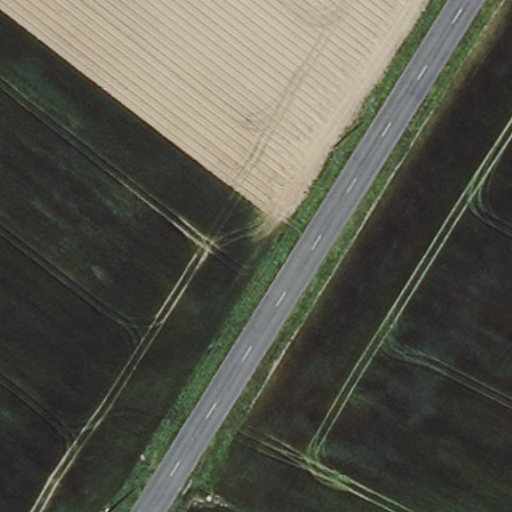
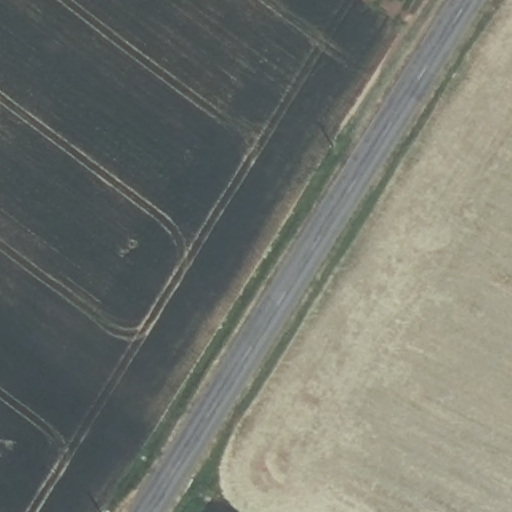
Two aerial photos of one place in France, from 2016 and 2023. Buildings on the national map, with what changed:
[]

